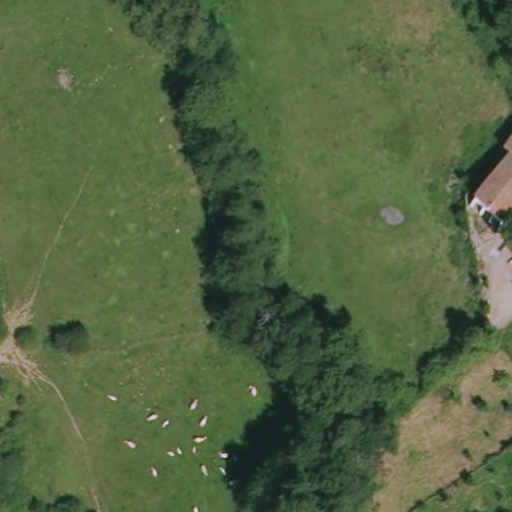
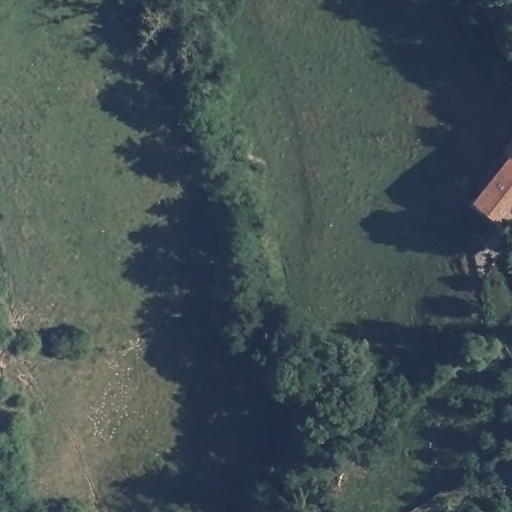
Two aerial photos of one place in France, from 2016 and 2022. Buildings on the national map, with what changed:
unchanged [(475,197),(507,155),(503,151),(512,139),(512,211),(505,220),(475,197)]

